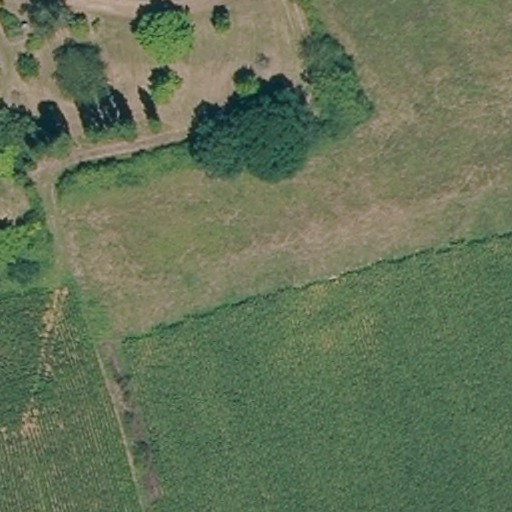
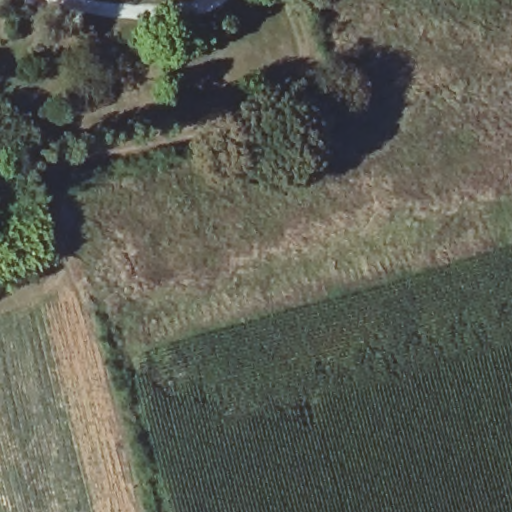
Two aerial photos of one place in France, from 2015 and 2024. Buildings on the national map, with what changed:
[]

